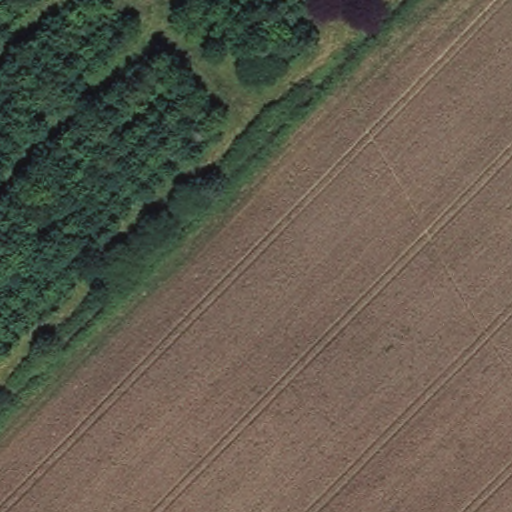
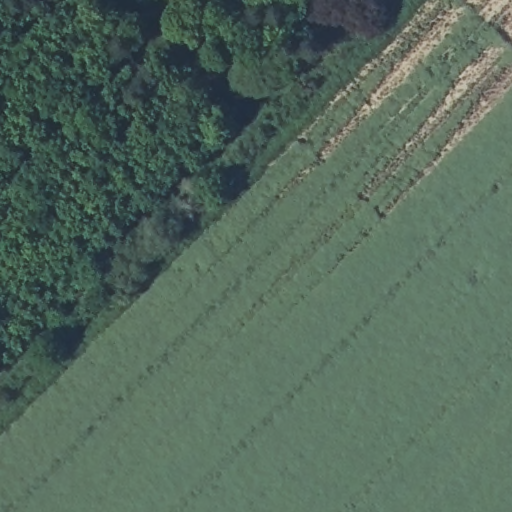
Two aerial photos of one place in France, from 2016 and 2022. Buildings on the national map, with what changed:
unchanged [(349,3),(346,0),(353,0),(349,3)]

